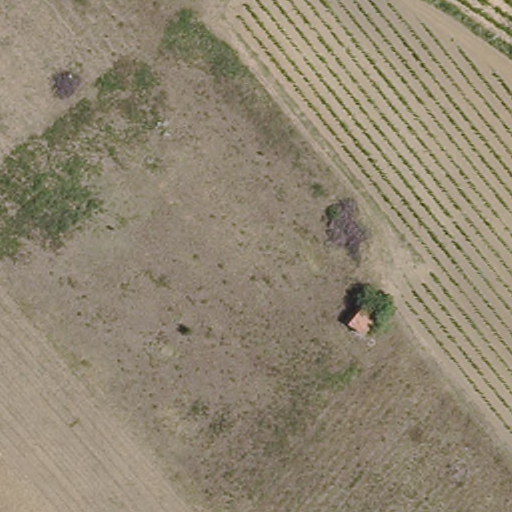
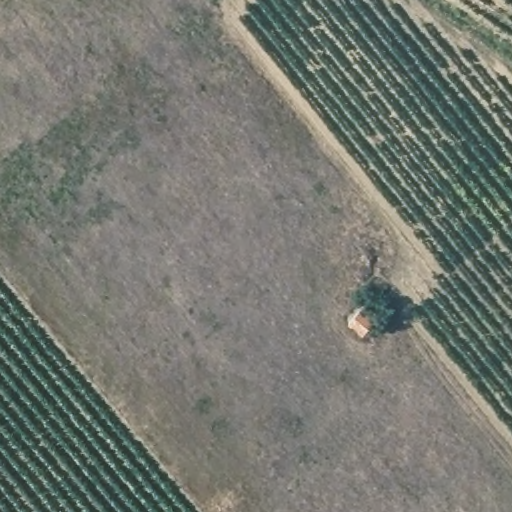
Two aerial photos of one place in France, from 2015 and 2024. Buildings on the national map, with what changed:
unchanged [(376,319),(361,336),(346,324),(362,307),(376,319)]

